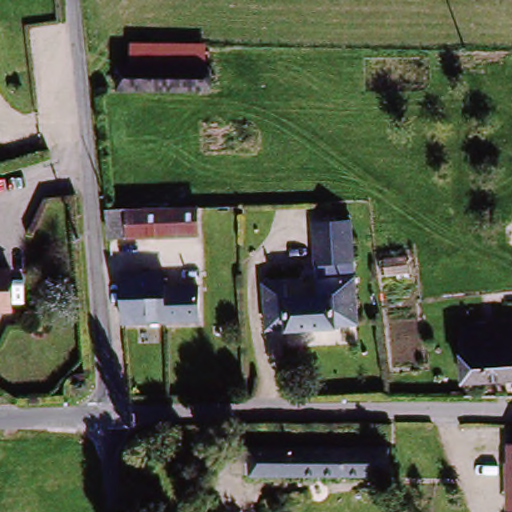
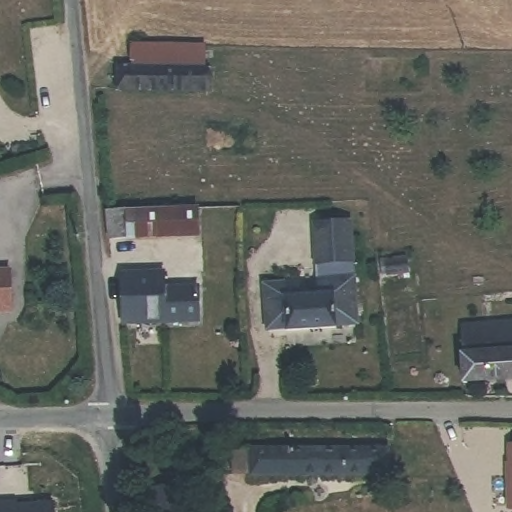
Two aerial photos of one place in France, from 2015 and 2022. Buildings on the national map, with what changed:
unchanged [(131,46),(163,48),(211,50),(210,72),(130,68),(131,46)]
unchanged [(209,98),(112,92),(113,67),(130,68),(210,72),(209,98)]
unchanged [(198,199),(200,241),(116,243),(112,198),(198,199)]
unchanged [(281,291),(315,291),(314,215),(354,216),(354,324),(334,324),(334,329),(279,329),(279,323),(259,323),(258,274),(281,274),(281,291)]
unchanged [(12,275),(13,315),(0,315),(0,275),(12,275)]
unchanged [(125,282),(162,279),(162,294),(198,293),(201,326),(128,328),(125,282)]
unchanged [(512,321),(512,342),(477,347),(474,327),(512,321)]
unchanged [(483,386),(477,347),(512,342),(512,381),(483,386)]
unchanged [(391,451),(390,484),(255,480),(255,448),(391,451)]
new [(18,503),(54,500),(55,512),(0,512),(0,500),(16,499),(18,503)]

